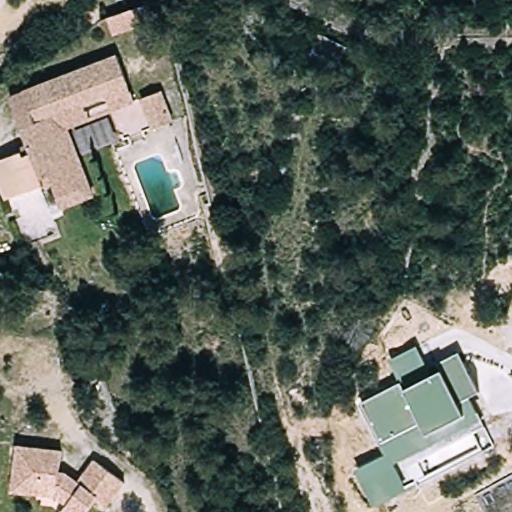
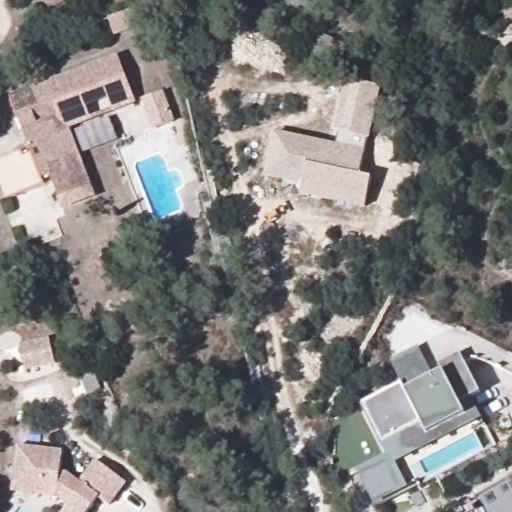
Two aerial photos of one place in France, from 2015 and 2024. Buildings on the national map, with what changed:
unchanged [(317,30),(343,44),(332,64),(307,50),(317,30)]
unchanged [(12,101),(114,60),(133,106),(112,115),(106,102),(85,111),(90,124),(66,133),(93,200),(57,214),(52,202),(59,200),(53,185),(7,203),(0,187),(0,164),(32,152),(12,101)]
new [(335,144),(337,133),(331,131),(342,79),(380,86),(369,138),(367,139),(364,150),(360,175),(372,178),(363,208),(299,194),(302,184),(263,175),(272,130),(335,144)]
unchanged [(159,94),(170,123),(150,132),(138,103),(159,94)]
unchanged [(430,368),(460,353),(479,393),(470,397),(480,420),(397,462),(405,489),(373,504),(358,471),(387,455),(381,442),(365,404),(401,384),(391,362),(417,347),(430,368)]
unchanged [(58,472),(65,473),(77,482),(92,460),(125,484),(107,508),(96,500),(88,512),(61,512),(65,507),(52,498),(9,493),(15,445),(60,451),(58,472)]
unchanged [(487,512),(478,495),(512,476),(512,512),(487,512)]

